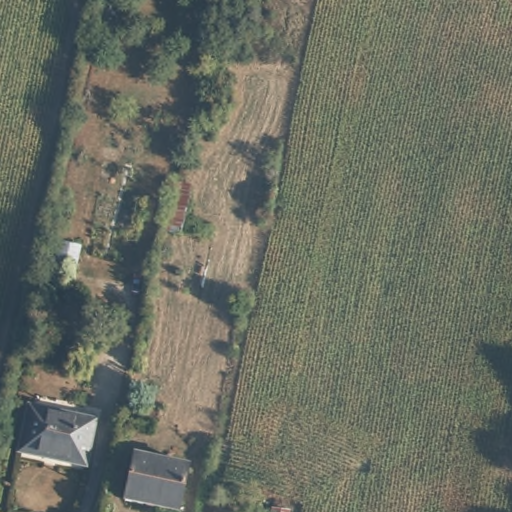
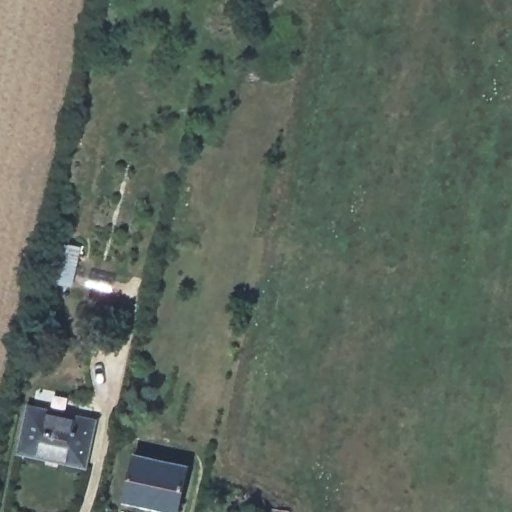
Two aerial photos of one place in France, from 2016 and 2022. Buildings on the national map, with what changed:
unchanged [(70,286),(46,281),(54,242),(77,247),(70,286)]
unchanged [(82,466),(14,451),(25,404),(92,419),(82,466)]
unchanged [(179,510),(127,500),(137,451),(188,461),(179,510)]
unchanged [(273,512),(273,506),(287,506),(286,512),(273,512)]

